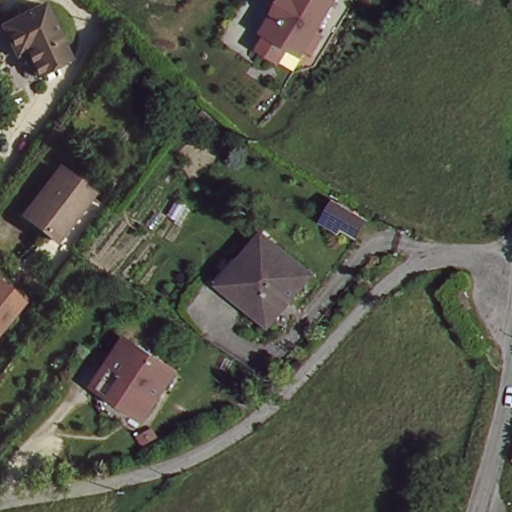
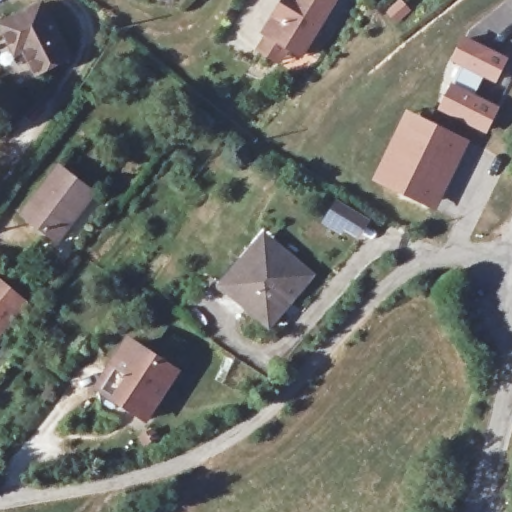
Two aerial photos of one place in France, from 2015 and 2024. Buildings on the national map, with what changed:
unchanged [(301,52),(263,29),(280,0),(332,0),(301,52)]
unchanged [(5,42),(0,33),(0,25),(41,5),(68,56),(33,74),(22,52),(12,57),(5,42)]
new [(461,34),(509,56),(497,83),(484,77),(448,61),(461,34)]
new [(450,80),(443,78),(448,61),(484,77),(477,93),(500,106),(487,135),(437,110),(450,80)]
new [(402,131),(412,137),(419,118),(457,137),(454,145),(462,149),(437,200),(429,196),(425,203),(387,183),(395,167),(386,164),(402,131)]
unchanged [(92,195),(56,245),(22,220),(58,171),(92,195)]
unchanged [(373,216),(360,237),(342,227),(340,230),(321,217),(336,192),(373,216)]
unchanged [(265,324),(230,293),(219,284),(262,234),(266,237),(310,272),(265,324)]
unchanged [(26,296),(0,325),(0,274),(26,296)]
unchanged [(104,405),(99,380),(113,361),(120,365),(138,340),(180,367),(147,414),(130,405),(121,416),(104,405)]

